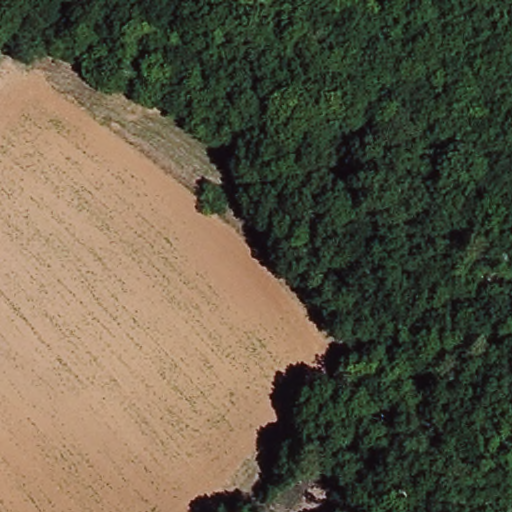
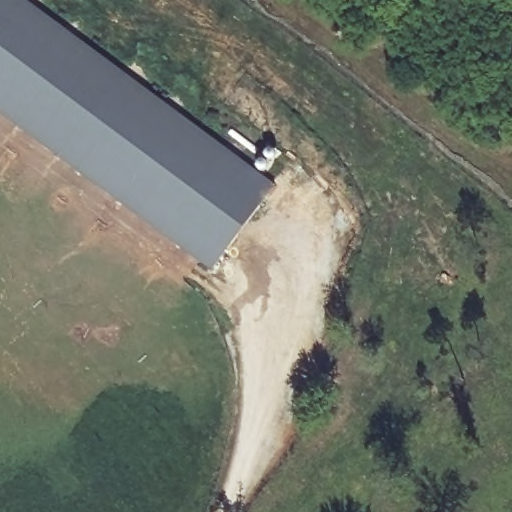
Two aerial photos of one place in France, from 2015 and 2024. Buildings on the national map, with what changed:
new [(19,0),(272,186),(211,270),(0,116),(0,0),(19,0)]

